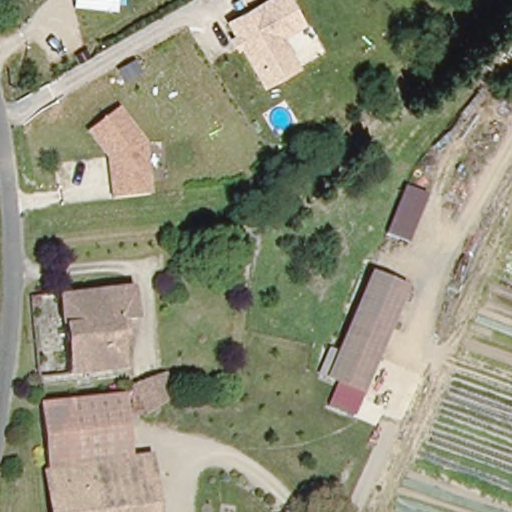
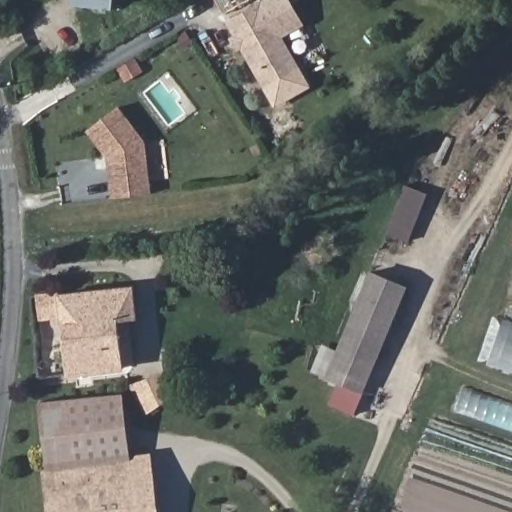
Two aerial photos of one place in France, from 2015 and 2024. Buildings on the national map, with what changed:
unchanged [(72,6),(72,0),(113,0),(112,7),(72,6)]
unchanged [(263,87),(226,22),(267,0),(287,0),(302,27),(283,39),(299,67),(263,87)]
unchanged [(145,141),(149,192),(110,199),(105,157),(85,131),(119,107),(145,141)]
unchanged [(408,242),(384,233),(404,185),(427,192),(408,242)]
unchanged [(371,267),(408,282),(366,388),(328,373),(371,267)]
unchanged [(132,280),(136,315),(120,317),(124,367),(71,373),(59,292),(132,280)]
new [(486,365),(503,320),(512,323),(512,374),(486,365)]
unchanged [(128,382),(163,373),(169,396),(143,413),(139,407),(129,386),(128,382)]
new [(464,387),(512,404),(512,433),(454,413),(464,387)]
unchanged [(76,466),(67,396),(119,388),(127,460),(76,466)]
unchanged [(140,457),(147,512),(51,512),(39,400),(67,396),(76,466),(127,460),(140,457)]

